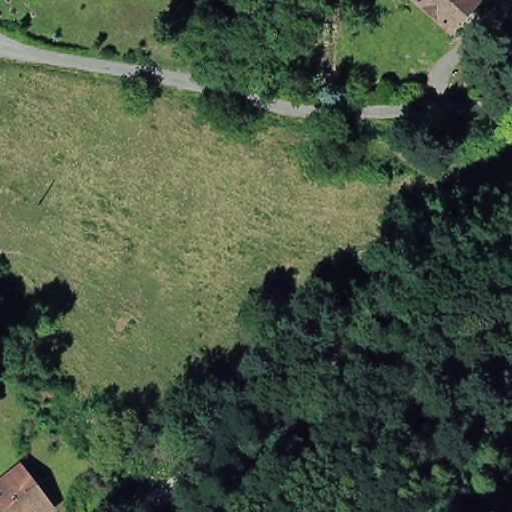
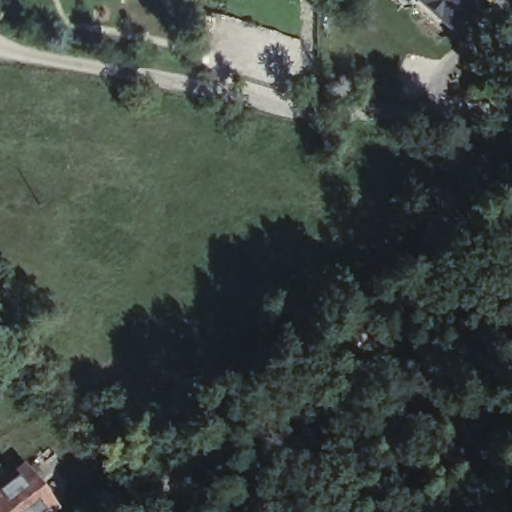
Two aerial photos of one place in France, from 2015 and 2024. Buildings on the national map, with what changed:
unchanged [(442,27),(411,0),(466,0),(442,27)]
unchanged [(49,509),(45,512),(0,512),(0,491),(20,474),(49,509)]

